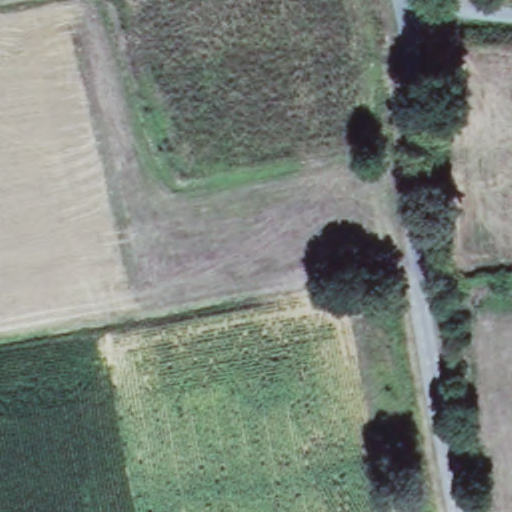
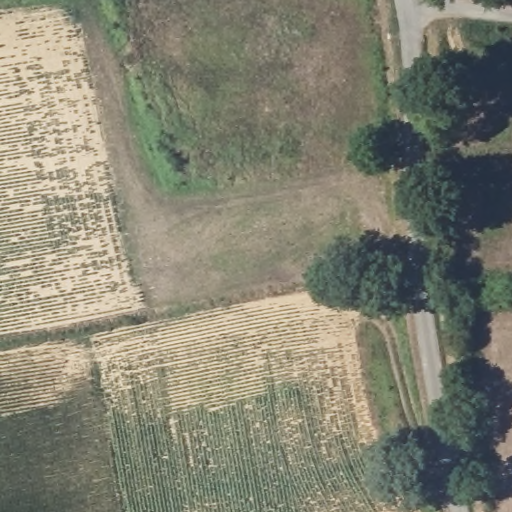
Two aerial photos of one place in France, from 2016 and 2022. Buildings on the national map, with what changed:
unchanged [(149,64),(156,79),(145,83),(139,66),(149,64)]

